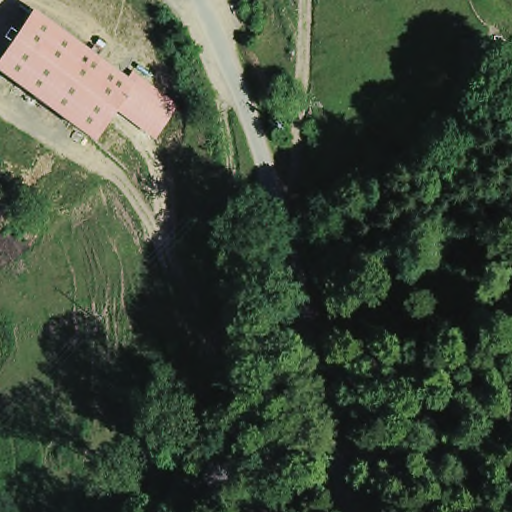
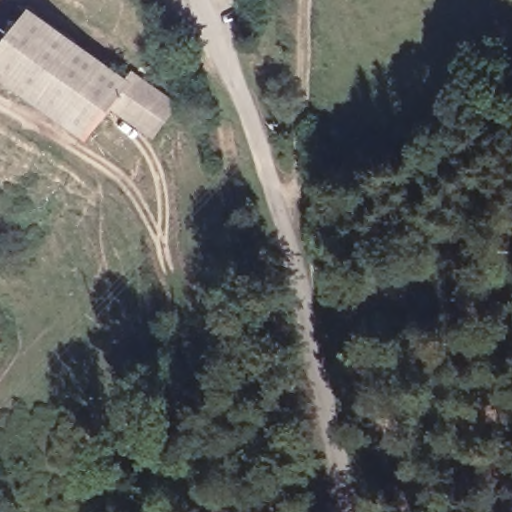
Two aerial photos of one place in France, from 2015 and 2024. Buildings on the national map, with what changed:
unchanged [(131,71),(178,104),(154,140),(113,110),(91,141),(0,77),(0,51),(29,9),(126,78),(131,71)]

